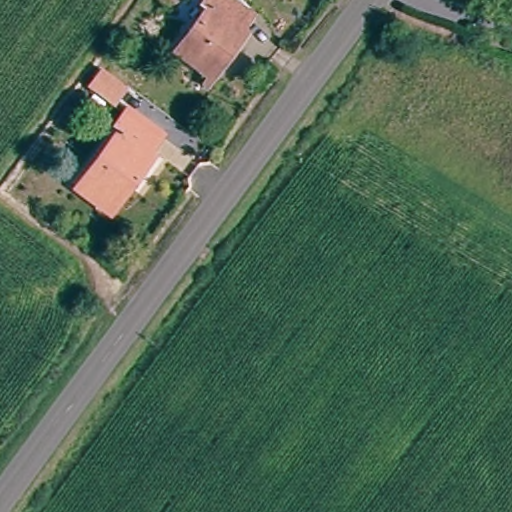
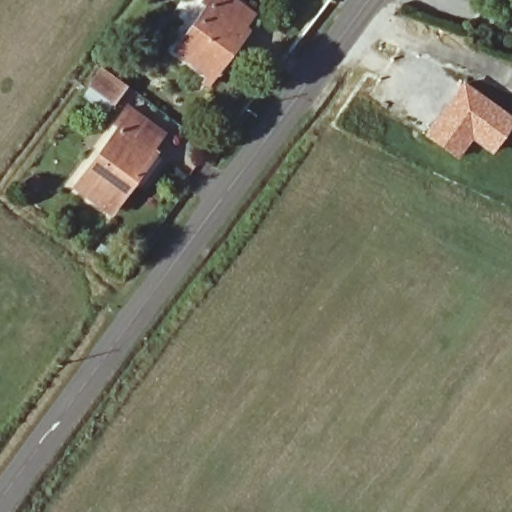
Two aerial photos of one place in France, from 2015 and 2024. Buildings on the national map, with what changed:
unchanged [(233,0),(252,14),(219,60),(227,65),(217,79),(180,52),(211,9),(205,5),(208,0),(233,0)]
unchanged [(102,75),(136,100),(121,121),(87,97),(102,75)]
new [(512,125),(493,152),(473,137),(458,157),(427,136),(465,87),(512,122),(512,125)]
unchanged [(125,149),(119,144),(131,128),(163,152),(152,167),(159,172),(116,231),(82,207),(125,149)]

